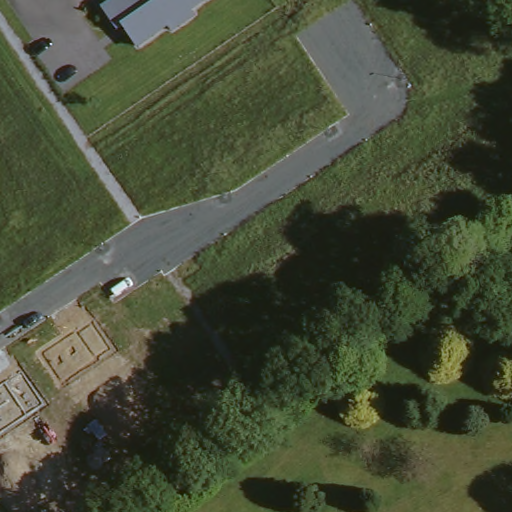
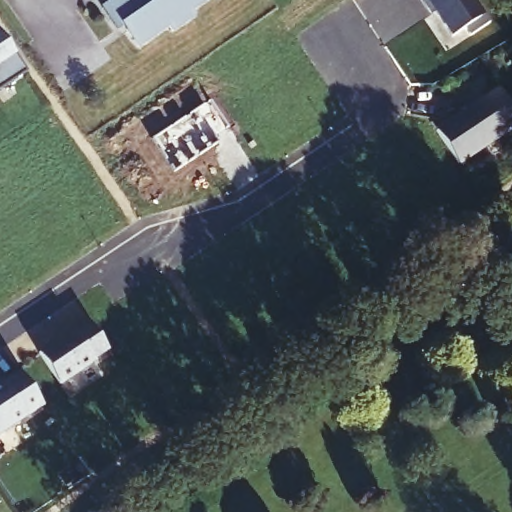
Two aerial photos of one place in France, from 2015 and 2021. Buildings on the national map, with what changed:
unchanged [(204,0),(195,6),(199,12),(177,27),(173,22),(165,28),(143,42),(129,22),(122,27),(107,4),(113,0),(204,0)]
new [(471,32),(469,26),(452,36),(435,10),(430,14),(421,0),(477,0),(488,18),(471,32)]
new [(27,70),(0,87),(0,27),(27,70)]
new [(512,108),(512,130),(460,163),(437,128),(498,87),(512,108)]
new [(110,346),(95,358),(96,360),(62,384),(40,352),(75,327),(77,330),(91,319),(110,346)]
new [(44,401),(0,432),(0,383),(21,368),(44,401)]

